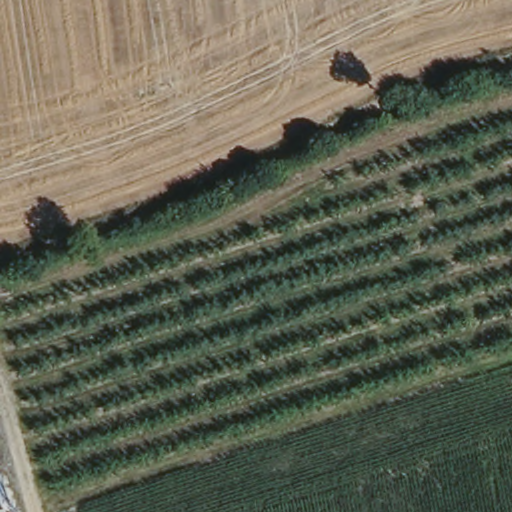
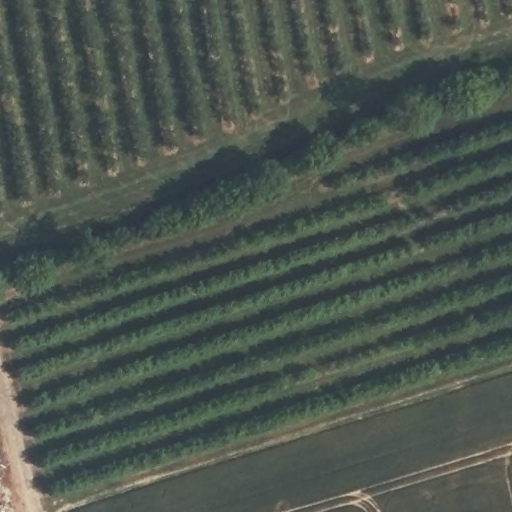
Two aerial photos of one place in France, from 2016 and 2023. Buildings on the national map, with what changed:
unchanged [(0,494),(4,512),(0,512),(0,494)]

